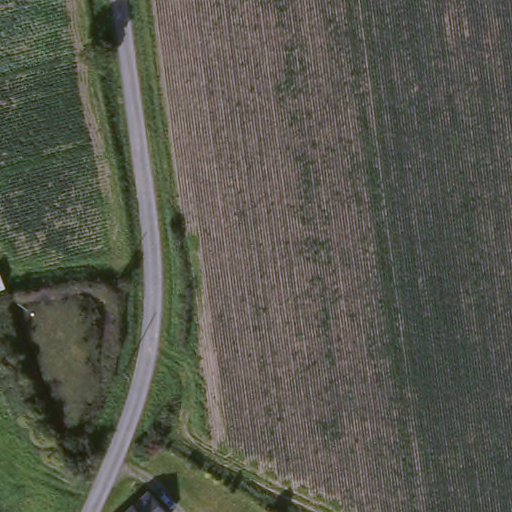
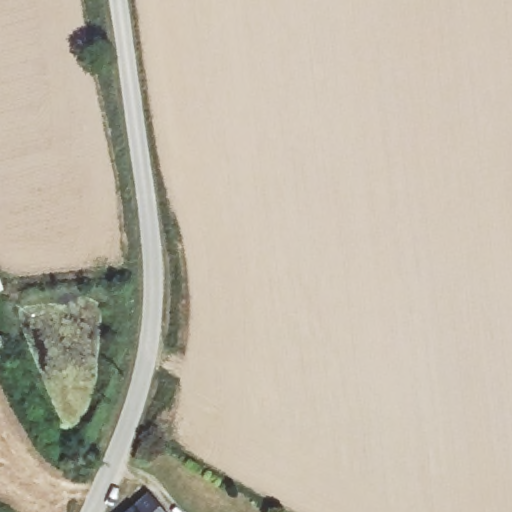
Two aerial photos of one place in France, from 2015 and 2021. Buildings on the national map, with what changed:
unchanged [(152,490),(172,512),(127,512),(152,490)]

